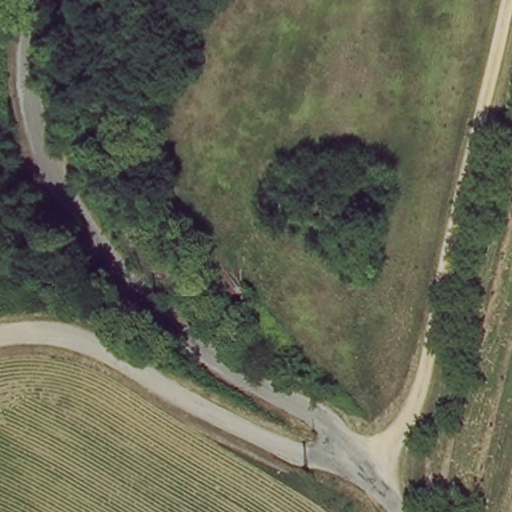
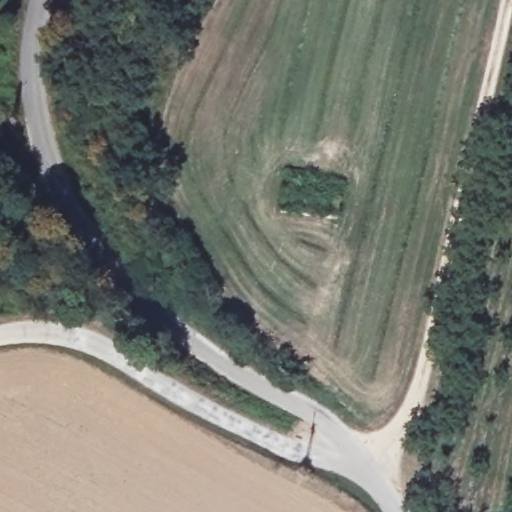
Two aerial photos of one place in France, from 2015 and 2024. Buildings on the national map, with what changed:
unchanged [(279,180),(289,140),(345,157),(335,196),(279,180)]

